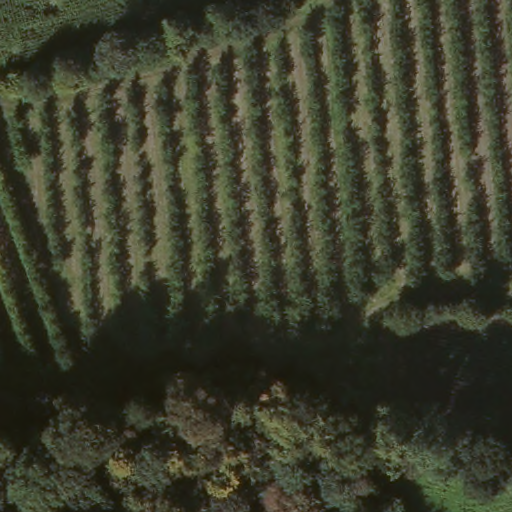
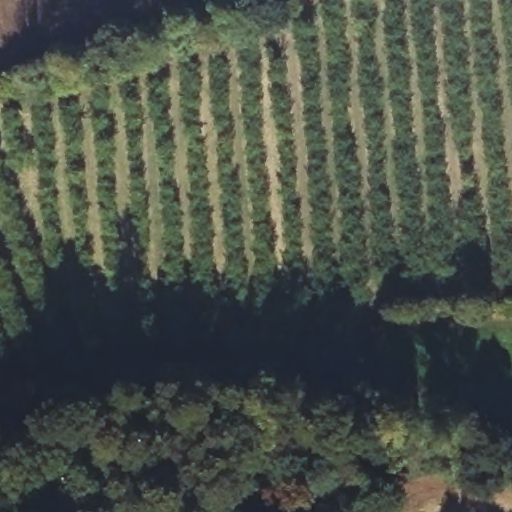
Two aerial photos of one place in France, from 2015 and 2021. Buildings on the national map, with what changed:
[]

